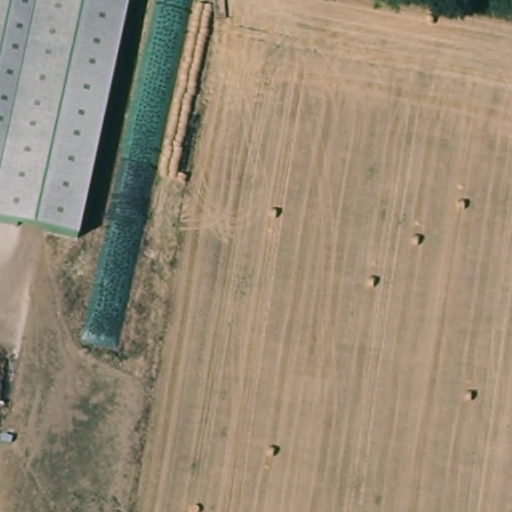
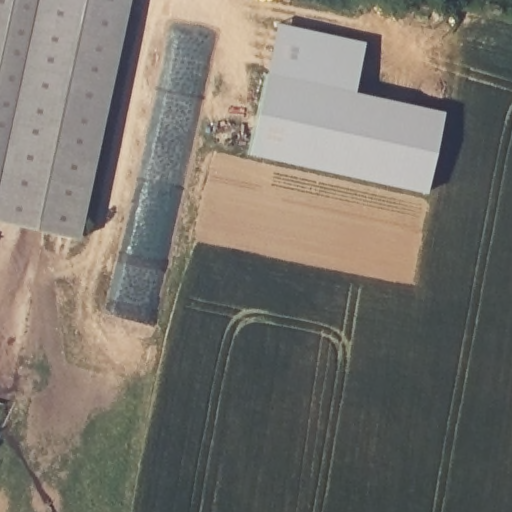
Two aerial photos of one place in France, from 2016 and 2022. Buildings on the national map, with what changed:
unchanged [(129,0),(78,239),(0,222),(0,0),(129,0)]
new [(425,194),(249,156),(266,74),(443,112),(425,194)]

